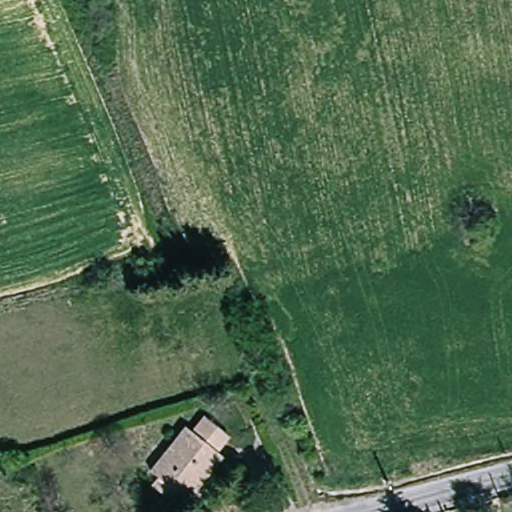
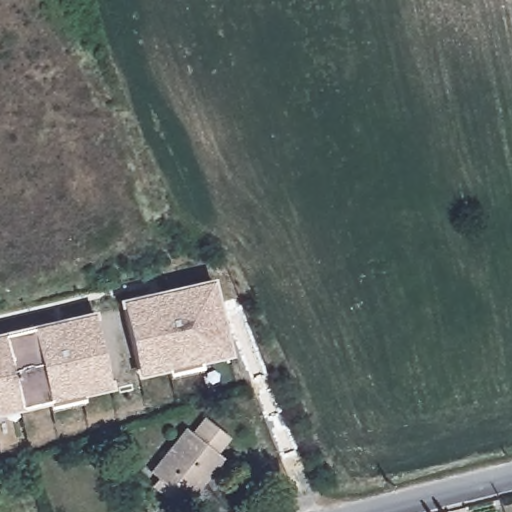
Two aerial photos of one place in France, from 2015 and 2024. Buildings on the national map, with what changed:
new [(214,277),(233,355),(200,362),(201,366),(170,373),(168,368),(138,377),(119,298),(214,277)]
new [(94,310),(112,387),(83,395),(84,398),(49,407),(49,403),(0,414),(0,332),(94,310)]
unchanged [(154,487),(161,478),(154,472),(189,427),(196,432),(208,417),(232,437),(219,452),(226,458),(192,502),(179,492),(172,502),(154,487)]

